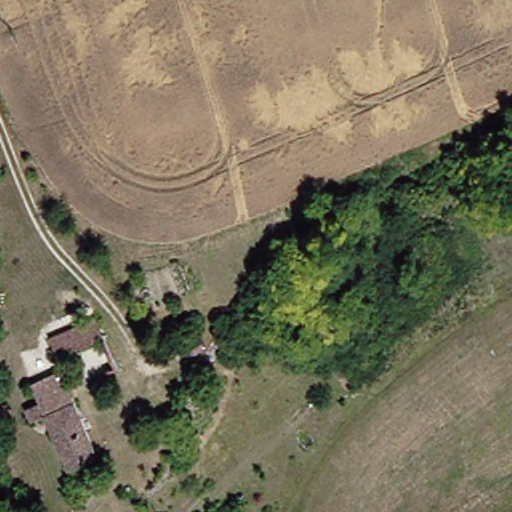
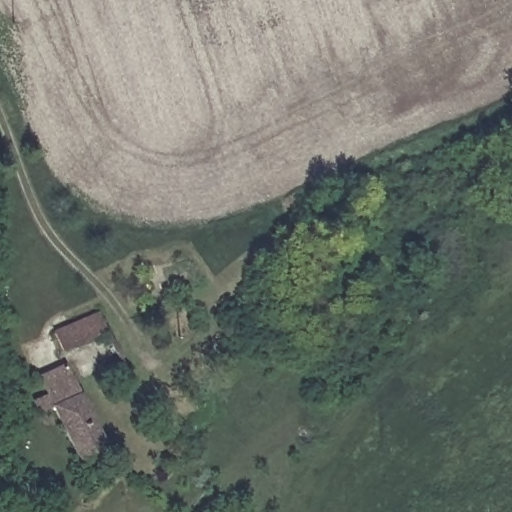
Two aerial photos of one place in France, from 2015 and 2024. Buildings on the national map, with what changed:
unchanged [(250,342),(244,333),(271,307),(281,317),(250,342)]
unchanged [(104,309),(111,323),(124,357),(71,381),(95,445),(69,455),(48,402),(36,405),(33,394),(44,390),(25,341),(104,309)]

